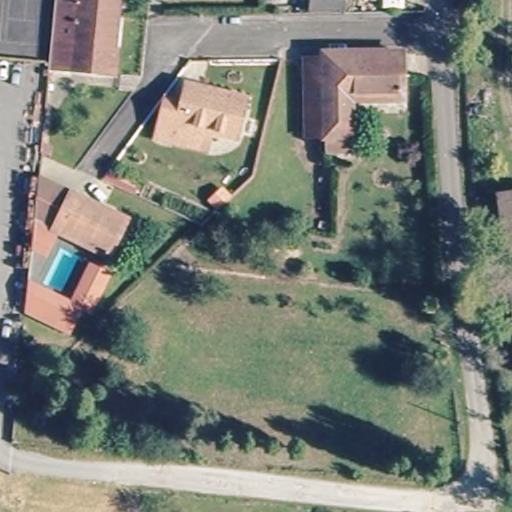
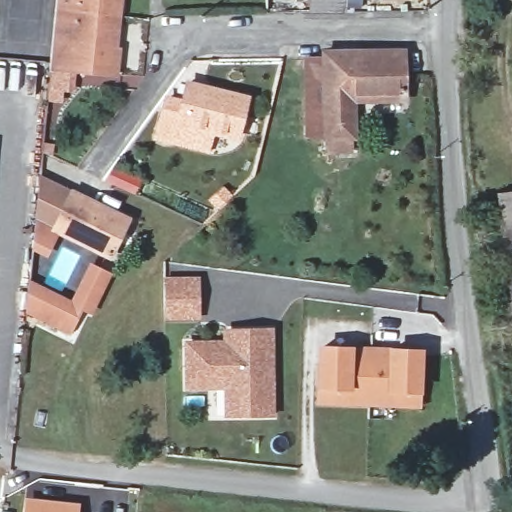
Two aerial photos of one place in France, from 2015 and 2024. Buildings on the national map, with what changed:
unchanged [(55,7),(56,0),(122,0),(120,15),(55,7)]
unchanged [(345,10),(312,8),(313,0),(346,0),(345,10)]
unchanged [(55,7),(120,15),(116,49),(119,50),(117,71),(49,65),(55,7)]
unchanged [(309,57),(323,57),(324,51),(377,52),(371,63),(371,111),(351,111),(350,119),(308,119),(309,57)]
unchanged [(406,112),(371,111),(371,63),(377,52),(397,52),(407,53),(406,112)]
unchanged [(183,139),(167,135),(175,97),(192,102),(197,82),(253,97),(244,136),(221,130),(215,147),(183,139)]
unchanged [(350,152),(349,166),(331,166),(330,137),(308,134),(308,119),(350,119),(350,152)]
unchanged [(32,250),(33,227),(38,175),(130,221),(111,255),(59,227),(47,260),(32,250)]
unchanged [(512,191),(512,315),(496,194),(512,191)]
unchanged [(212,218),(204,210),(217,197),(225,206),(212,218)]
unchanged [(70,300),(90,262),(111,273),(91,315),(83,310),(71,335),(23,312),(28,279),(70,300)]
new [(199,320),(163,320),(164,277),(199,276),(199,320)]
new [(224,418),(222,390),(185,390),(184,341),(222,340),(221,330),(272,327),(274,416),(224,418)]
new [(316,405),(316,388),(317,346),(352,346),(388,347),(423,348),(421,396),(421,408),(316,405)]
new [(80,503),(79,512),(23,512),(24,497),(80,503)]

